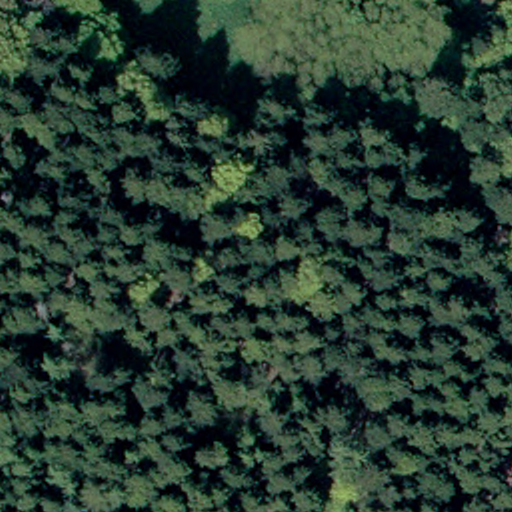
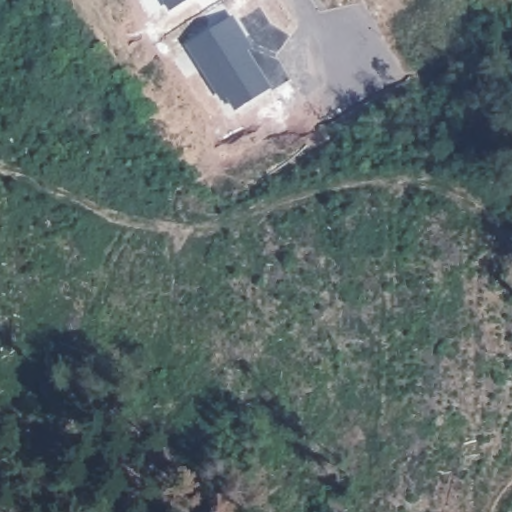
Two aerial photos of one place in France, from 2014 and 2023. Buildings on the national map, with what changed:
new [(163,0),(185,0),(169,10),(163,0)]
new [(231,17),(245,37),(240,40),(268,87),(235,109),(226,95),(221,97),(187,45),(231,17)]

